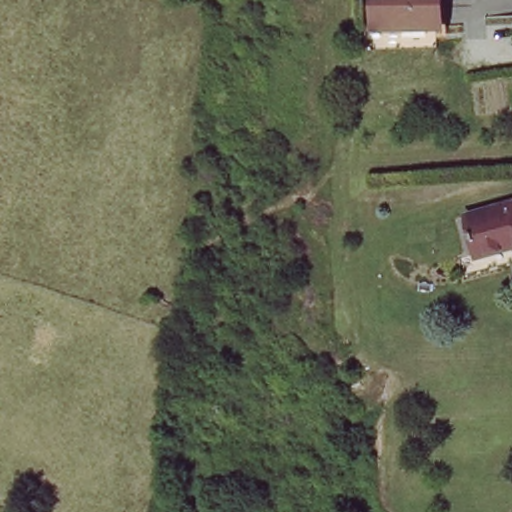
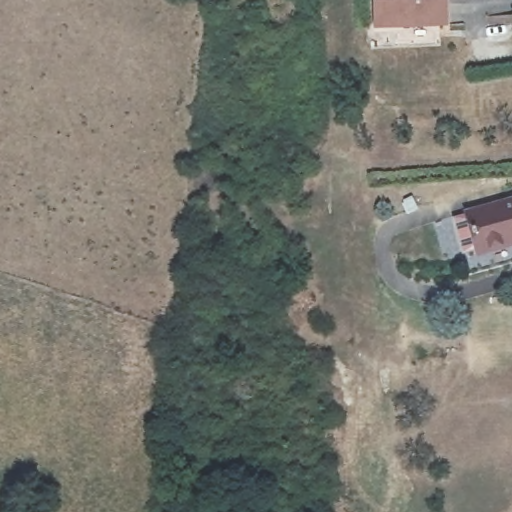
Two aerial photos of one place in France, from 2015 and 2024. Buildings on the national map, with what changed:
unchanged [(379,0),(449,0),(452,22),(385,33),(380,4),(379,0)]
unchanged [(471,196),(510,180),(512,180),(512,246),(477,260),(468,242),(483,234),(471,196)]

